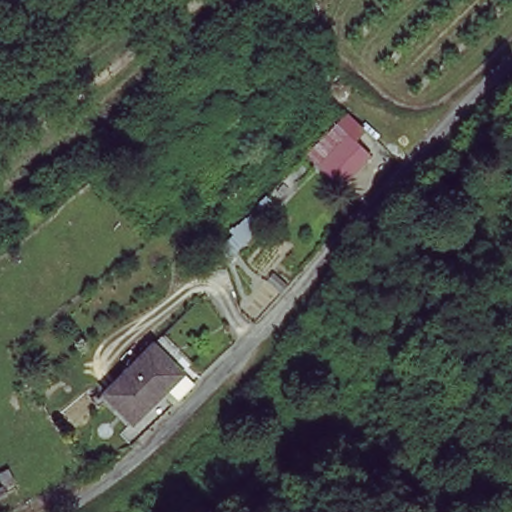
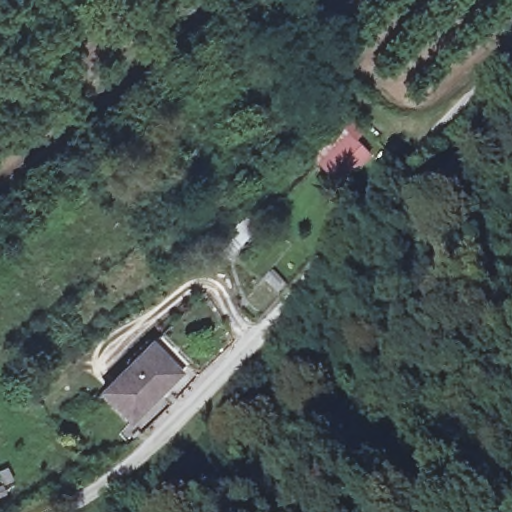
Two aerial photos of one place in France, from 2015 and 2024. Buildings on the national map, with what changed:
unchanged [(342,188),(303,152),(333,120),(369,155),(342,188)]
unchanged [(238,244),(223,231),(264,191),(275,204),(238,244)]
unchanged [(145,345),(155,354),(178,372),(140,420),(106,396),(113,386),(145,345)]

